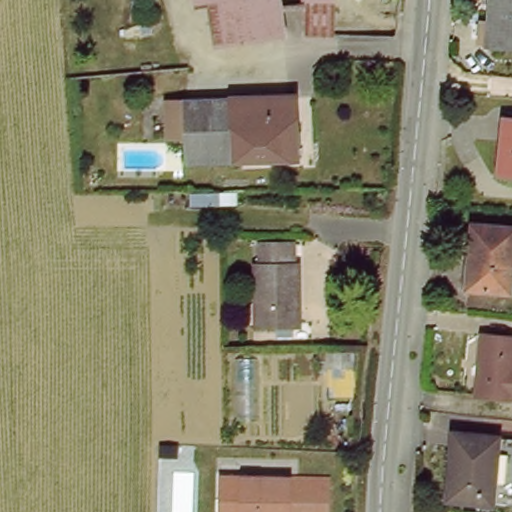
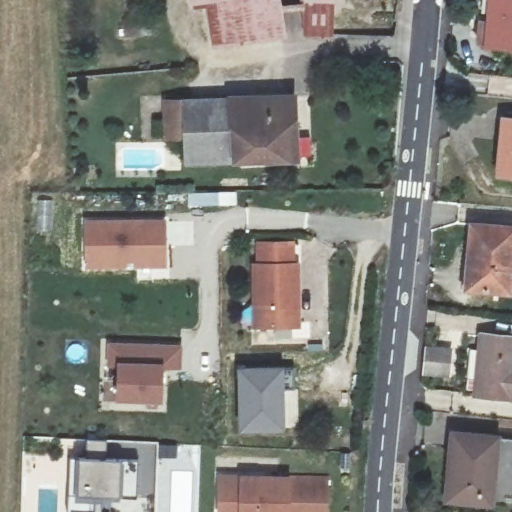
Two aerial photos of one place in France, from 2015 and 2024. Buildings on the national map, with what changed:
unchanged [(210,1),(196,4),(195,0),(219,0),(210,1)]
unchanged [(219,0),(287,0),(291,33),(216,45),(210,1),(219,0)]
unchanged [(311,35),(311,0),(342,0),(343,31),(311,35)]
unchanged [(493,0),(512,0),(512,51),(491,49),(493,0)]
unchanged [(226,97),(290,94),(292,160),(231,162),(226,97)]
unchanged [(178,164),(177,99),(226,97),(231,162),(178,164)]
unchanged [(505,120),(512,121),(512,178),(501,177),(505,120)]
new [(170,220),(170,268),(89,269),(88,221),(170,220)]
unchanged [(469,223),(512,223),(512,262),(510,292),(465,291),(469,223)]
unchanged [(253,269),(261,270),(261,247),(291,247),(291,270),(299,269),(299,331),(253,332),(253,269)]
unchanged [(477,332),(511,332),(510,361),(512,361),(512,391),(477,390),(477,332)]
new [(181,370),(162,367),(161,403),(115,400),(118,363),(106,364),(108,343),(182,347),(181,370)]
new [(286,364),(286,388),(298,388),(298,429),(238,431),(237,365),(286,364)]
unchanged [(451,439),(512,443),(512,495),(450,492),(451,439)]
new [(77,459),(83,458),(87,440),(107,441),(102,459),(119,461),(138,463),(137,498),(117,498),(108,498),(109,512),(66,512),(68,458),(77,459)]
unchanged [(287,478),(325,481),(323,512),(236,512),(214,511),(216,472),(287,478)]

